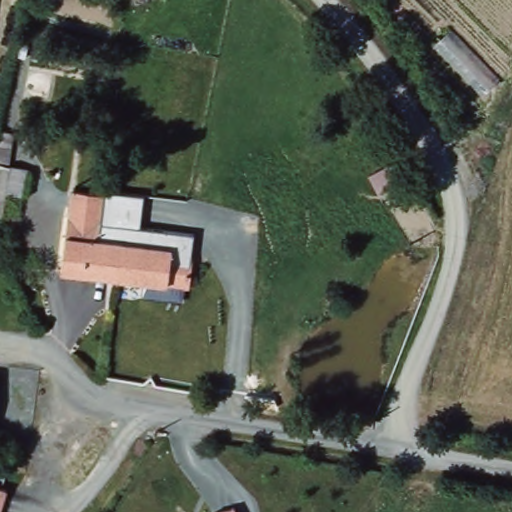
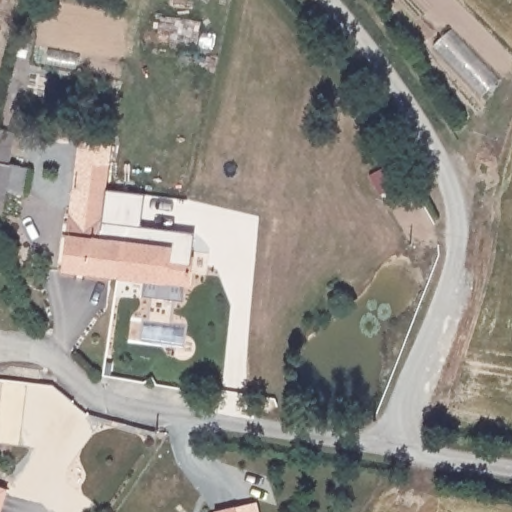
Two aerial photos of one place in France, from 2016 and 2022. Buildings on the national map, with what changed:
unchanged [(2,215),(0,215),(0,146),(9,147),(7,164),(28,168),(24,193),(19,218),(2,215)]
unchanged [(103,200),(100,225),(101,225),(99,242),(123,246),(117,283),(61,276),(67,221),(68,221),(71,196),(103,200)]
unchanged [(194,236),(191,260),(193,260),(190,292),(117,283),(123,246),(99,242),(101,225),(194,236)]
unchanged [(4,504),(1,512),(0,512),(0,488),(8,490),(4,504)]
unchanged [(235,507),(236,512),(214,512),(235,507)]

